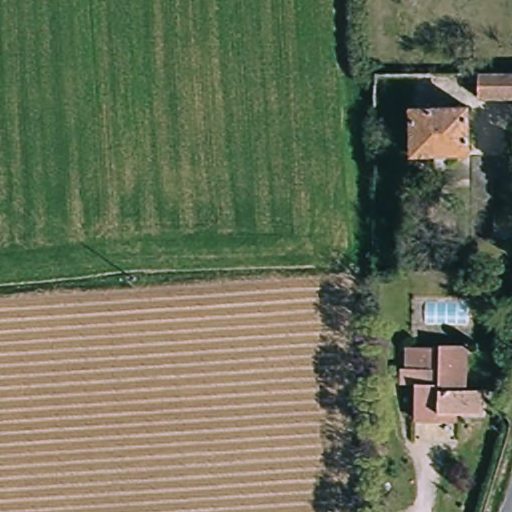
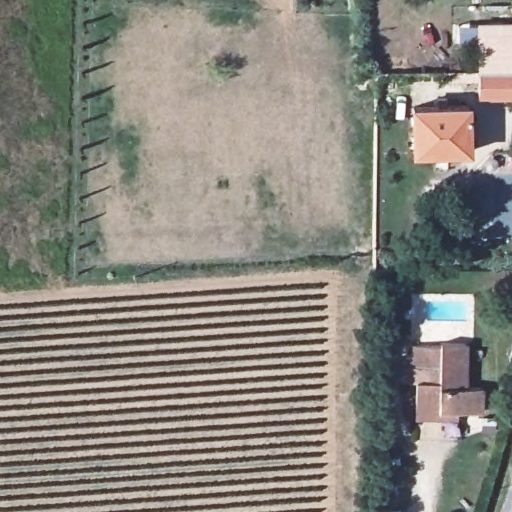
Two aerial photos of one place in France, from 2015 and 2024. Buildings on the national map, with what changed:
new [(476,68),(477,24),(512,23),(512,69),(476,68)]
unchanged [(477,103),(476,68),(512,69),(512,103),(477,103)]
unchanged [(468,110),(467,146),(413,146),(413,108),(468,110)]
unchanged [(404,385),(405,367),(442,367),(441,344),(467,345),(467,384),(482,385),(482,412),(445,411),(445,425),(420,425),(420,385),(404,385)]

